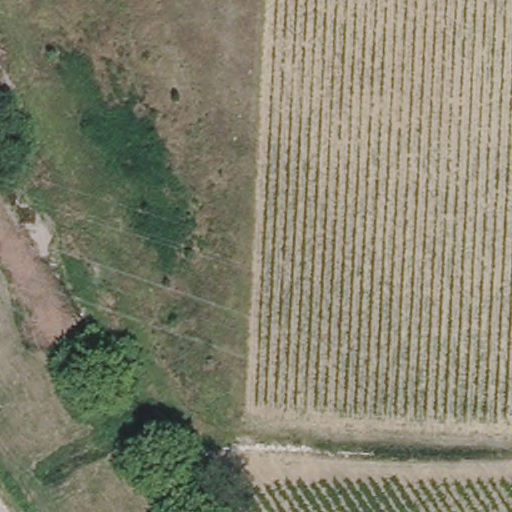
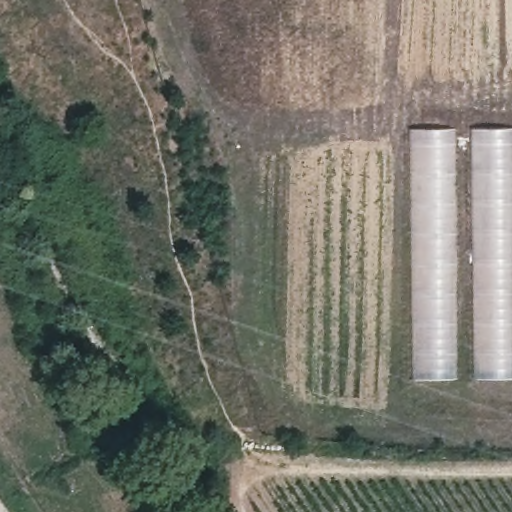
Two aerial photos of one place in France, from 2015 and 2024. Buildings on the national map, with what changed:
new [(412,381),(411,130),(456,129),(456,380),(412,381)]
new [(475,379),(472,129),(512,129),(512,379),(475,379)]

